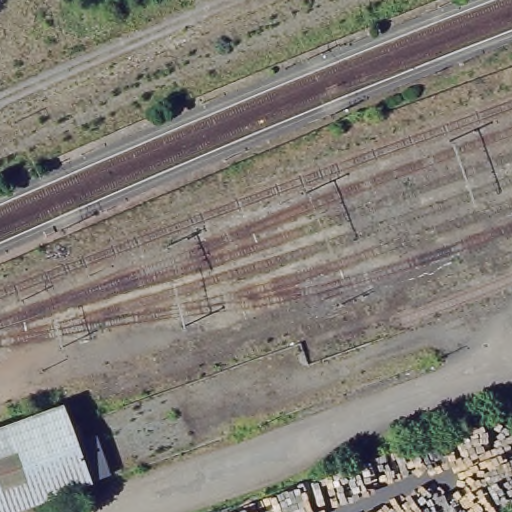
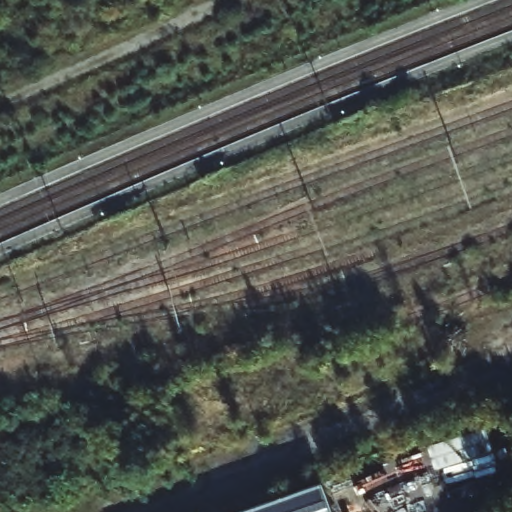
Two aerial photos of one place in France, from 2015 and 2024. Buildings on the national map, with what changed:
demolished [(73,441),(75,441),(95,435),(109,476),(87,483),(9,512),(0,512),(0,429),(61,407),(73,441)]
new [(487,427),(495,451),(437,469),(430,444),(487,427)]
new [(317,488),(328,512),(249,512),(317,488)]

